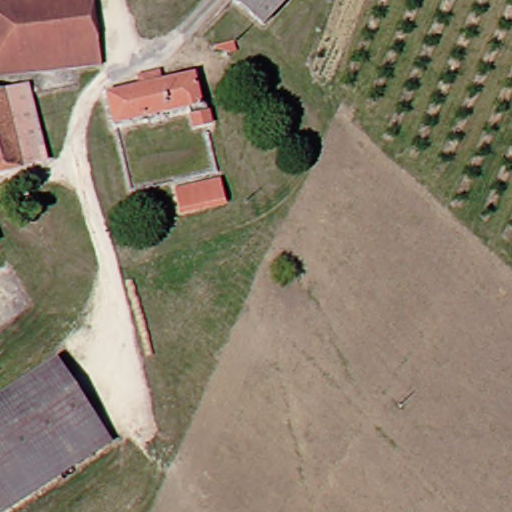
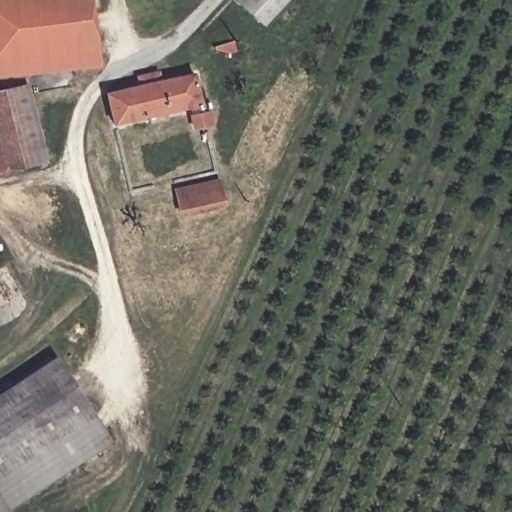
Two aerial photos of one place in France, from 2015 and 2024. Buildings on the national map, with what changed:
unchanged [(61,5),(66,69),(0,76),(0,0),(89,0),(90,4),(61,5)]
unchanged [(262,23),(243,2),(245,0),(282,0),(262,23)]
unchanged [(95,66),(66,69),(61,5),(90,4),(95,66)]
unchanged [(110,93),(138,84),(137,73),(158,67),(160,76),(192,72),(200,100),(203,99),(207,119),(190,124),(185,106),(115,123),(108,93),(110,93)]
unchanged [(22,87),(36,142),(10,148),(0,110),(0,92),(22,87)]
unchanged [(10,148),(36,142),(42,160),(0,171),(0,110),(10,148)]
unchanged [(221,181),(223,203),(180,212),(175,189),(221,181)]
unchanged [(6,268),(0,271),(0,255),(6,268)]
unchanged [(0,512),(0,392),(51,357),(110,441),(3,512),(0,512)]

